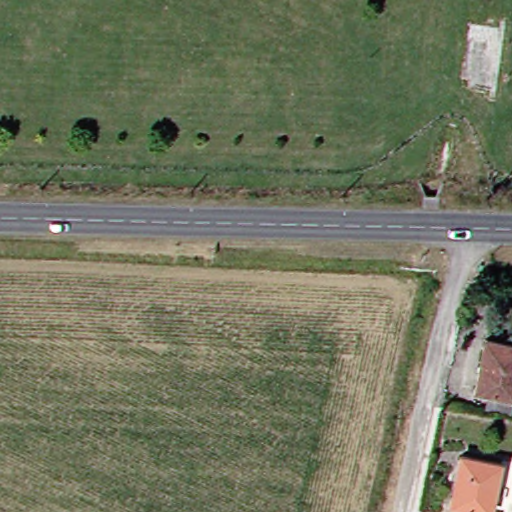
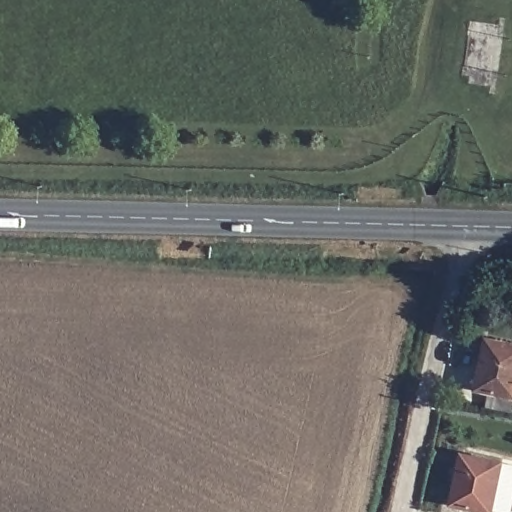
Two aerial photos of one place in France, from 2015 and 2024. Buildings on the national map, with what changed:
unchanged [(512,394),(482,389),(489,339),(512,343),(512,394)]
unchanged [(511,465),(503,512),(462,503),(470,458),(511,465)]

